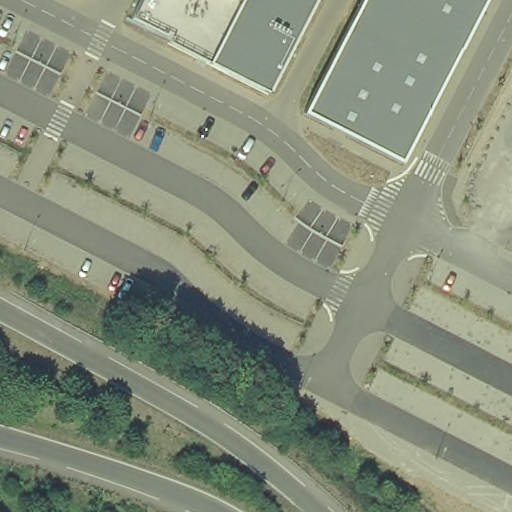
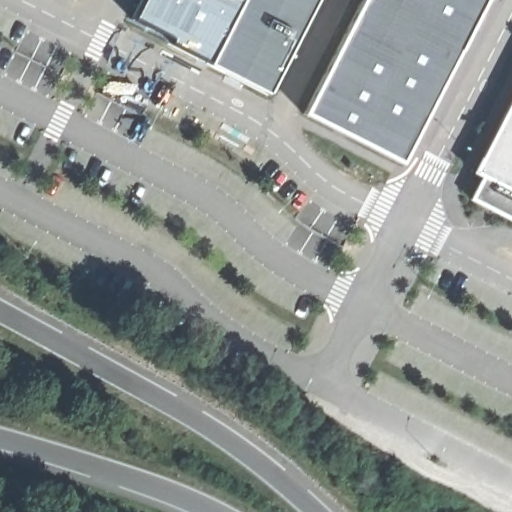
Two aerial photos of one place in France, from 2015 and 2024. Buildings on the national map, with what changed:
unchanged [(143,0),(316,0),(268,93),(211,63),(172,44),(173,40),(133,19),(143,0)]
unchanged [(364,0),(487,0),(402,164),(305,114),(364,0)]
new [(470,199),(481,177),(472,172),(512,94),(512,221),(470,199)]

